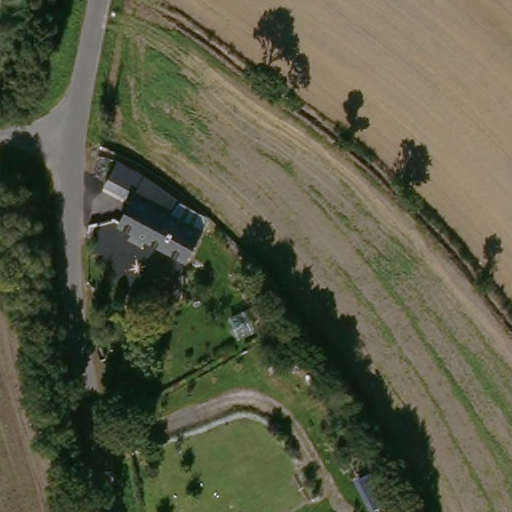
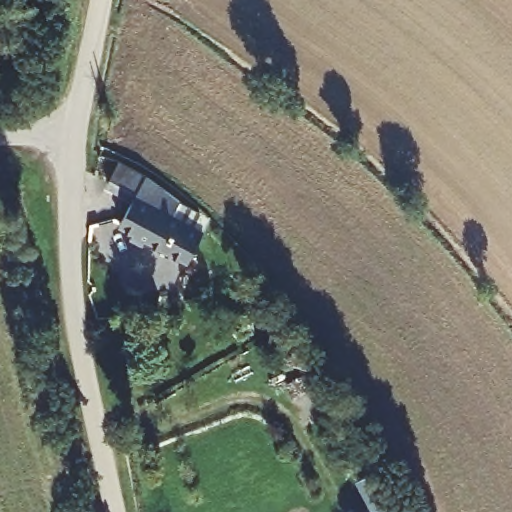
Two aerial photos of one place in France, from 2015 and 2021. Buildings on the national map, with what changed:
unchanged [(141,248),(131,243),(135,235),(118,226),(131,203),(103,189),(115,168),(144,181),(179,204),(172,217),(203,234),(186,264),(145,241),(141,248)]

